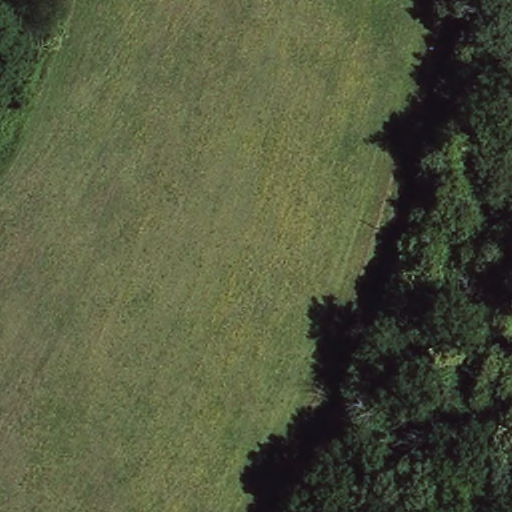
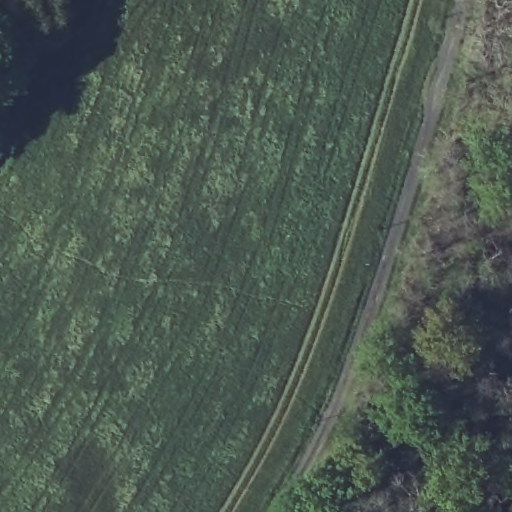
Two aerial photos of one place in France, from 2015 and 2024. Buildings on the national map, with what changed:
[]

